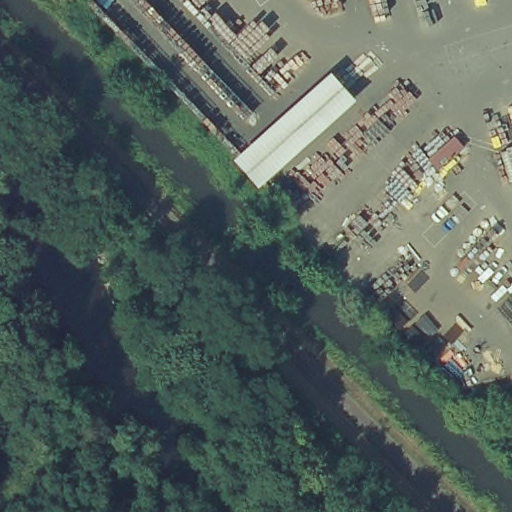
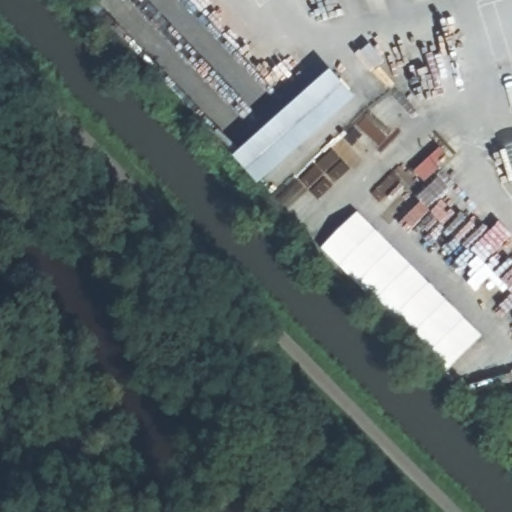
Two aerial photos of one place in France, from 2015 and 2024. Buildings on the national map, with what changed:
unchanged [(354,101),(255,186),(231,158),(328,70),(354,101)]
unchanged [(512,149),(512,186),(502,153),(512,149)]
new [(357,213),(483,337),(447,375),(322,250),(357,213)]

